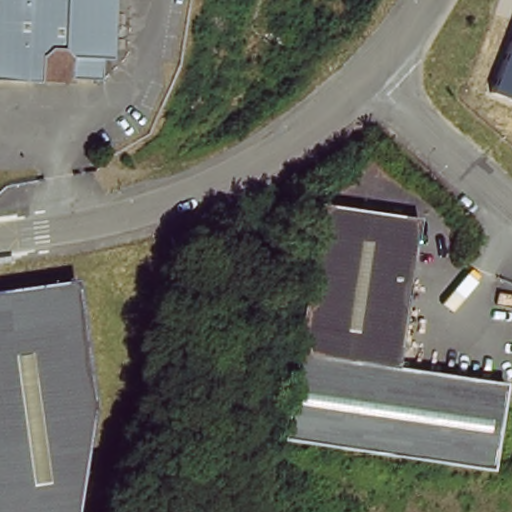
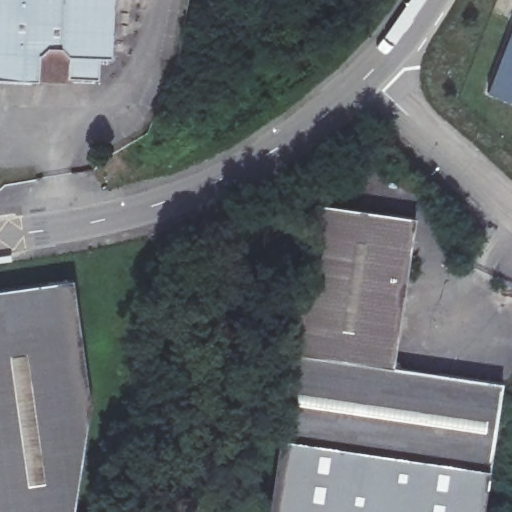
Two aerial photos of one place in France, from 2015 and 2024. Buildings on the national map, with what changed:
unchanged [(114,71),(102,71),(101,92),(0,86),(0,0),(118,0),(114,71)]
unchanged [(494,94),(512,47),(512,101),(494,94)]
unchanged [(416,217),(394,369),(503,385),(490,472),(280,441),(313,203),(416,217)]
unchanged [(180,241),(182,251),(165,255),(162,246),(180,241)]
unchanged [(77,282),(93,403),(77,512),(0,512),(0,292),(77,282)]
new [(484,512),(269,512),(280,441),(490,472),(484,512)]

